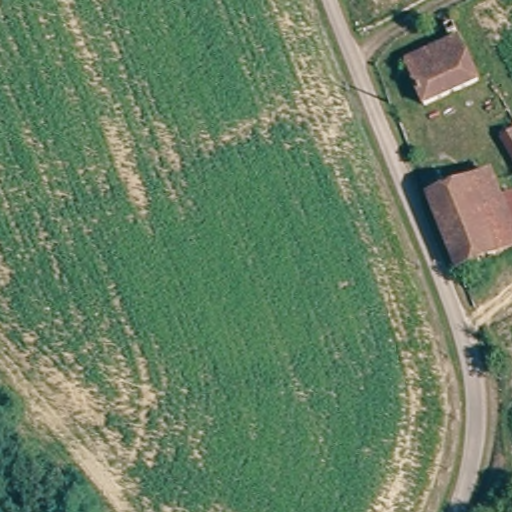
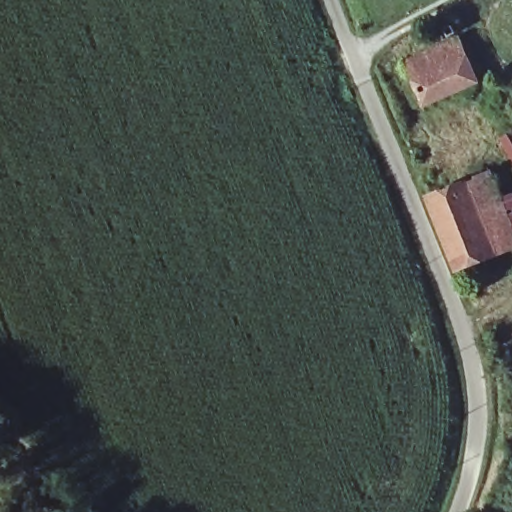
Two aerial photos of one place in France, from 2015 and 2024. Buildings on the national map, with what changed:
unchanged [(480,79),(428,103),(409,61),(462,38),(480,79)]
unchanged [(512,120),(512,148),(500,126),(512,120)]
unchanged [(512,250),(464,269),(436,200),(497,175),(512,213),(512,250)]

